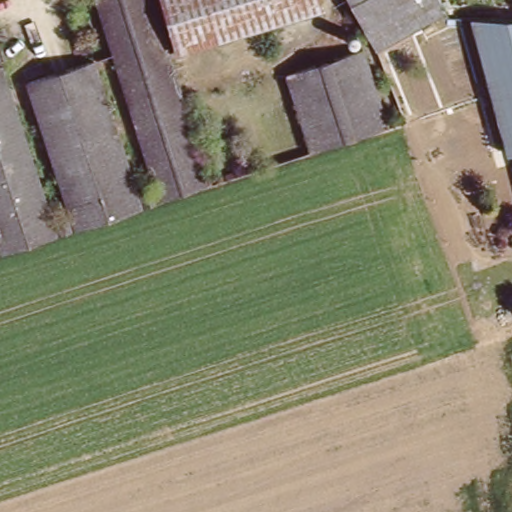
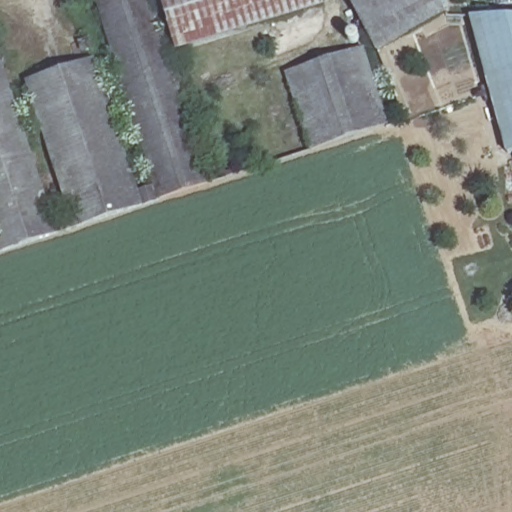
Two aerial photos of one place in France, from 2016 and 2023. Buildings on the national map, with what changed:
unchanged [(198,185),(155,199),(89,0),(137,0),(198,185)]
unchanged [(308,11),(165,52),(150,0),(305,0),(308,11)]
unchanged [(442,8),(395,37),(376,47),(355,0),(439,0),(442,8)]
unchanged [(508,150),(478,33),(475,13),(512,11),(512,149),(508,150)]
unchanged [(6,248),(0,230),(0,33),(62,229),(6,248)]
unchanged [(365,43),(391,121),(316,146),(290,69),(365,43)]
unchanged [(86,54),(137,205),(79,224),(28,72),(86,54)]

